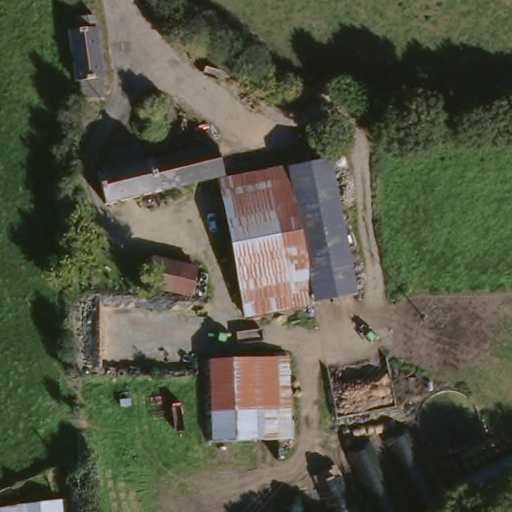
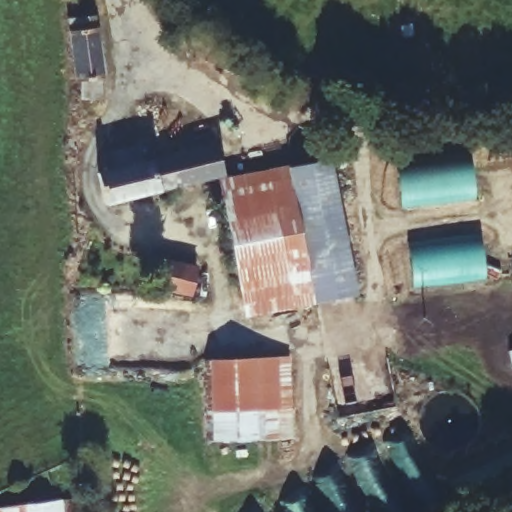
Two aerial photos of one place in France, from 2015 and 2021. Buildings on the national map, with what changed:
unchanged [(100,89),(81,86),(82,68),(74,60),(71,32),(69,10),(79,10),(95,8),(98,28),(103,64),(100,89)]
unchanged [(95,165),(107,164),(105,148),(111,147),(109,132),(126,131),(128,145),(141,143),(143,157),(159,154),(229,142),(236,171),(219,176),(219,179),(99,199),(95,165)]
new [(476,198),(401,207),(398,166),(471,159),(476,198)]
unchanged [(325,160),(351,293),(246,312),(219,179),(325,160)]
new [(481,237),(486,277),(413,286),(408,248),(481,237)]
unchanged [(191,296),(146,285),(151,257),(198,269),(191,296)]
unchanged [(209,354),(289,353),(293,434),(212,435),(209,354)]
unchanged [(0,512),(0,504),(62,500),(63,512),(0,512)]

